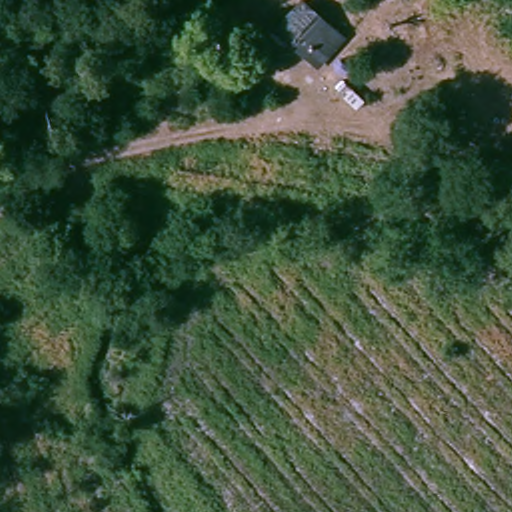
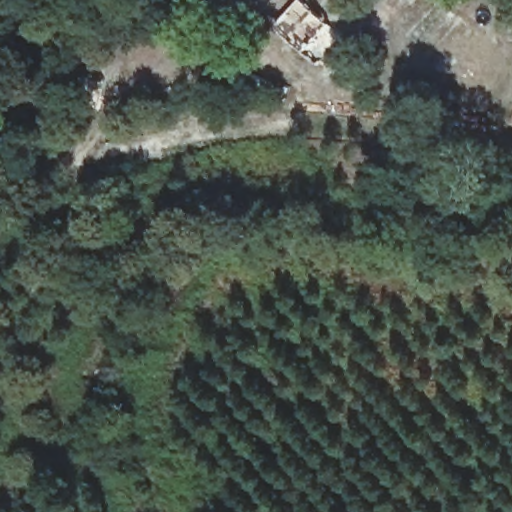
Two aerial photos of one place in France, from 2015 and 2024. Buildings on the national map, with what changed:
unchanged [(299,0),(305,0),(338,29),(326,44),(318,37),(305,51),(277,27),(299,0)]

